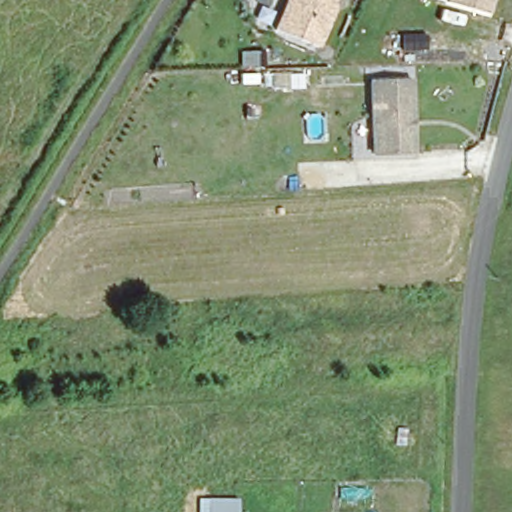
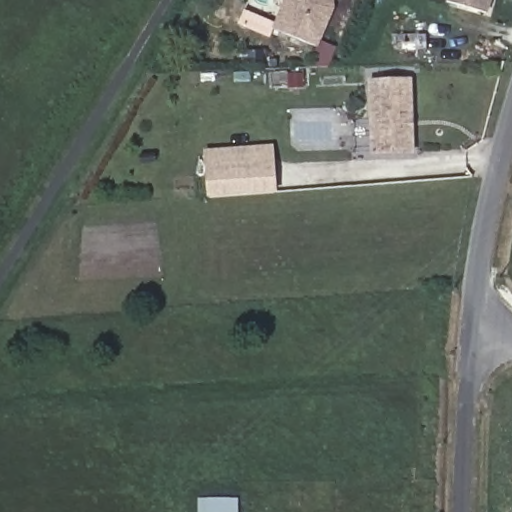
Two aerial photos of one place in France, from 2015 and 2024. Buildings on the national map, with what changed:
unchanged [(275,30),(286,2),(285,0),(336,0),(337,12),(320,48),(275,30)]
unchanged [(491,14),(447,3),(448,0),(494,0),(491,14)]
unchanged [(416,152),(372,155),(368,81),(412,81),(416,152)]
new [(278,192),(208,197),(205,150),(274,145),(278,192)]

